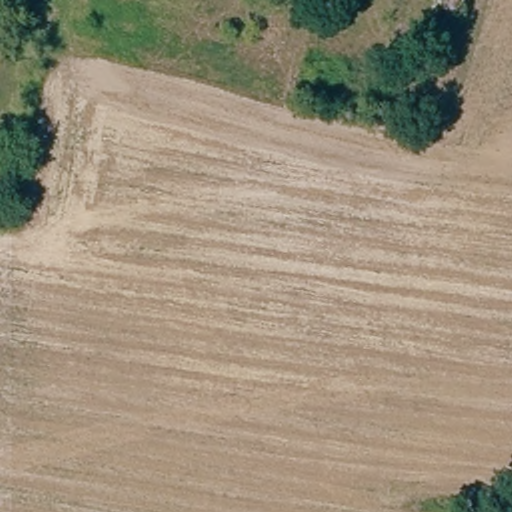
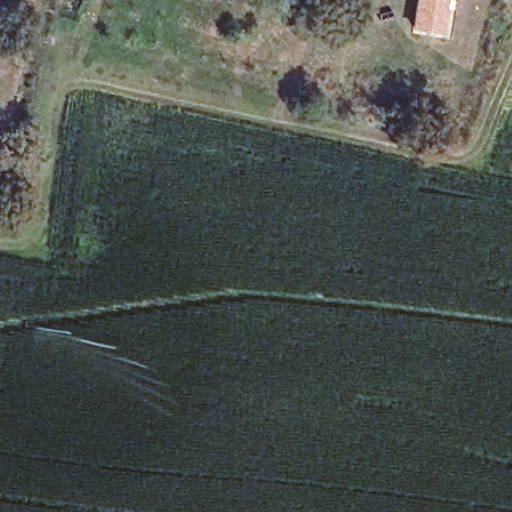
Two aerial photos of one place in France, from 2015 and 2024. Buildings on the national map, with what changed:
new [(418,0),(456,0),(449,40),(412,34),(418,0)]
demolished [(459,32),(451,30),(449,41),(428,36),(439,0),(467,0),(459,32)]

